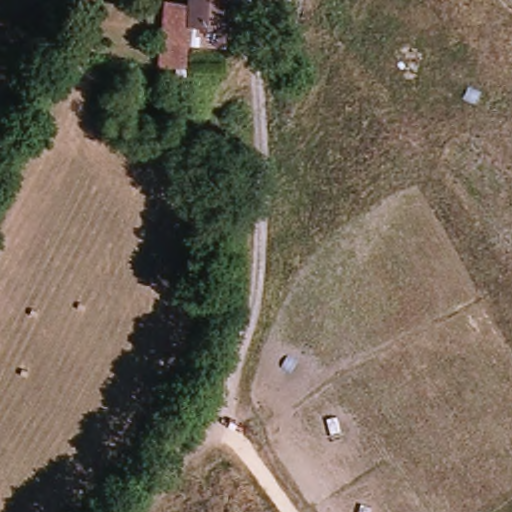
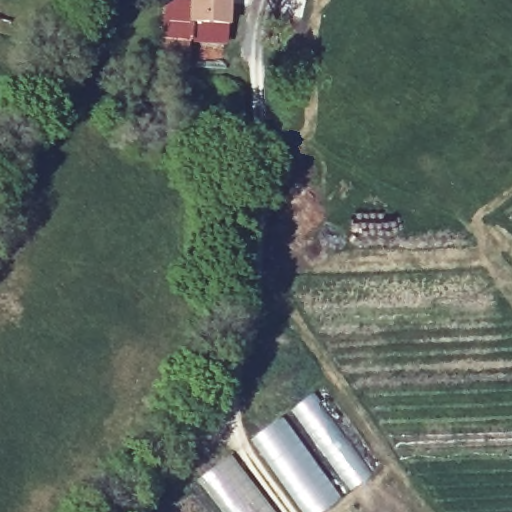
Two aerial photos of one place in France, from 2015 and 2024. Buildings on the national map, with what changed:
unchanged [(194,3),(195,0),(225,0),(225,6),(229,6),(224,66),(169,64),(172,1),(185,3),(194,3)]
unchanged [(140,14),(158,16),(157,34),(139,34),(140,14)]
new [(312,396),(371,476),(322,512),(301,512),(250,441),(312,396)]

